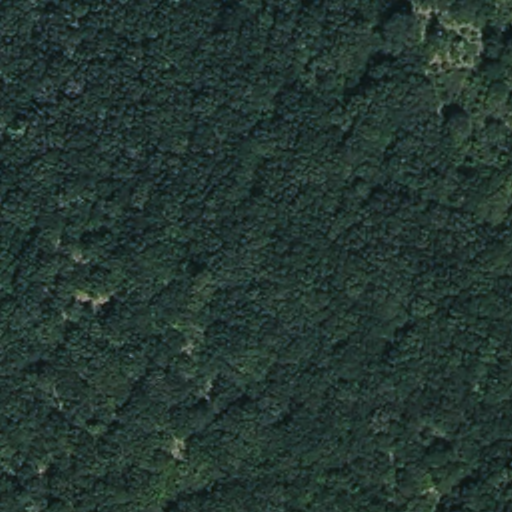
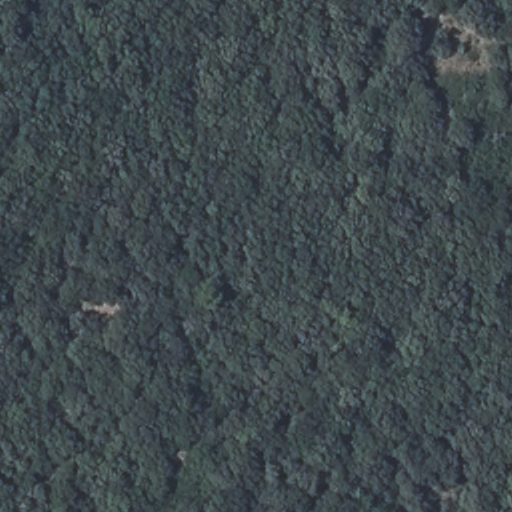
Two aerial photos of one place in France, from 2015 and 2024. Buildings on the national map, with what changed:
[]

